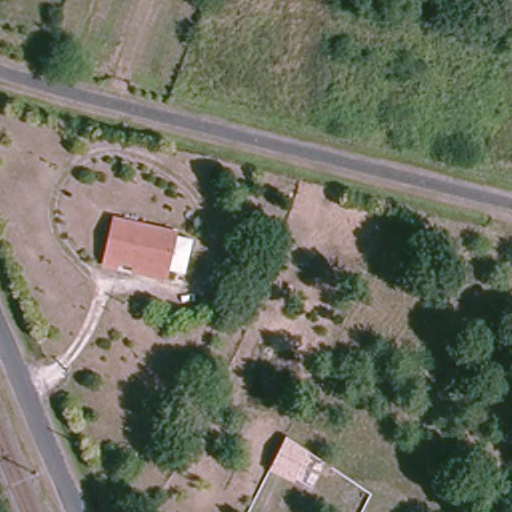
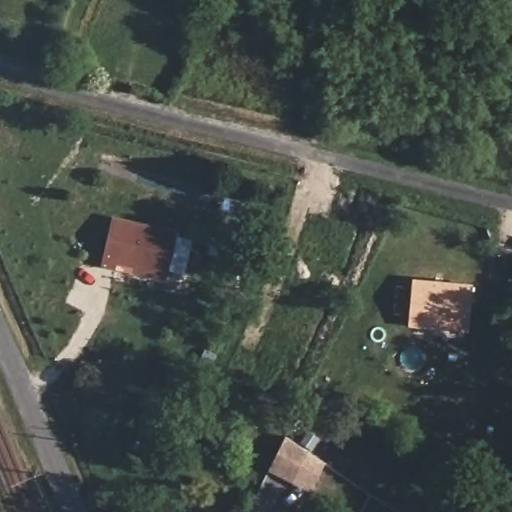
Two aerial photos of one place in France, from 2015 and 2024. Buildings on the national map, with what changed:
unchanged [(180,230),(168,273),(118,260),(116,266),(101,262),(114,214),(180,230)]
unchanged [(250,257),(237,286),(223,281),(234,250),(250,257)]
new [(408,325),(413,278),(473,283),(469,330),(408,325)]
unchanged [(286,435),(308,451),(297,476),(272,465),(286,435)]

